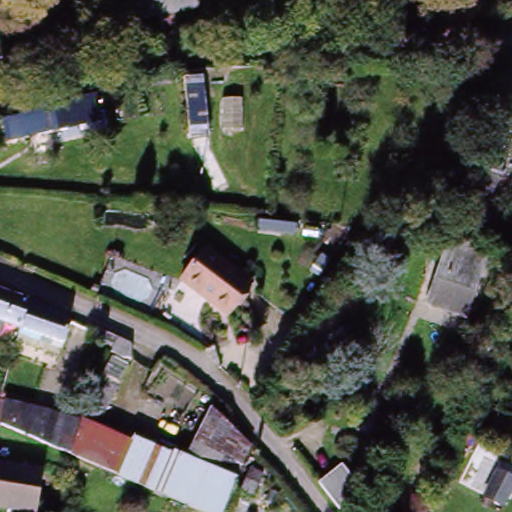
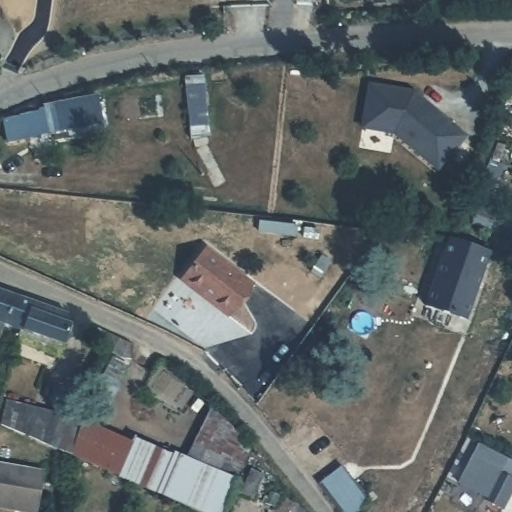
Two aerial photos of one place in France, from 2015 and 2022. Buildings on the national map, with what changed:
unchanged [(191,143),(183,82),(201,80),(209,141),(191,143)]
new [(413,93),(465,136),(438,169),(394,133),(362,128),(370,86),(413,93)]
unchanged [(0,130),(0,123),(42,114),(41,109),(46,108),(47,113),(55,111),(55,106),(92,98),(97,124),(4,145),(0,130)]
unchanged [(223,100),(242,99),(243,130),(224,130),(223,100)]
unchanged [(424,234),(384,229),(386,214),(426,219),(424,234)]
unchanged [(297,226),(296,238),(258,233),(260,221),(297,226)]
unchanged [(303,238),(305,228),(320,231),(318,240),(303,238)]
unchanged [(422,305),(446,242),(450,243),(486,258),(462,321),(422,305)]
unchanged [(180,285),(205,251),(251,285),(226,318),(180,285)]
unchanged [(19,324),(15,337),(0,332),(0,285),(76,311),(77,321),(69,342),(66,353),(24,338),(26,327),(19,324)]
unchanged [(131,344),(132,360),(125,359),(112,353),(114,347),(95,338),(99,329),(131,344)]
demolished [(177,394),(156,378),(164,368),(186,385),(177,394)]
unchanged [(0,418),(4,403),(11,405),(75,420),(85,424),(70,457),(5,428),(0,426),(0,418)]
unchanged [(0,414),(0,412),(1,413),(0,414)]
unchanged [(212,412),(252,449),(225,512),(194,512),(172,503),(186,469),(212,412)]
unchanged [(134,446),(119,479),(70,457),(85,424),(134,446)]
new [(483,502),(485,499),(459,485),(479,445),(512,461),(512,495),(504,510),(483,502)]
unchanged [(119,479),(134,446),(186,469),(172,503),(119,479)]
demolished [(473,460),(484,465),(475,484),(463,478),(473,460)]
unchanged [(37,512),(19,512),(0,509),(0,464),(44,471),(37,512)]
unchanged [(360,512),(341,512),(320,487),(343,469),(366,497),(360,512)]
unchanged [(241,494),(251,470),(262,476),(252,500),(241,494)]
demolished [(497,474),(512,481),(512,491),(503,508),(483,498),(497,474)]

